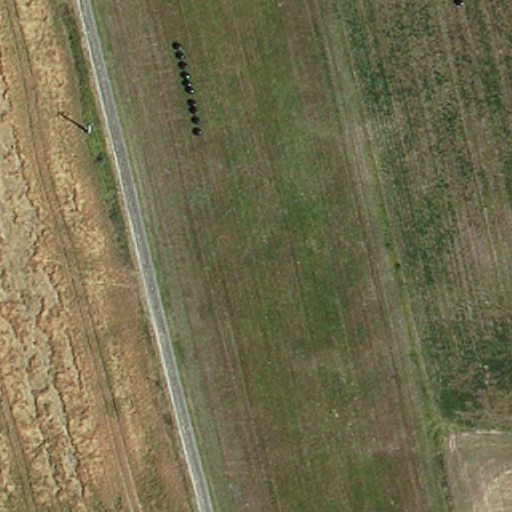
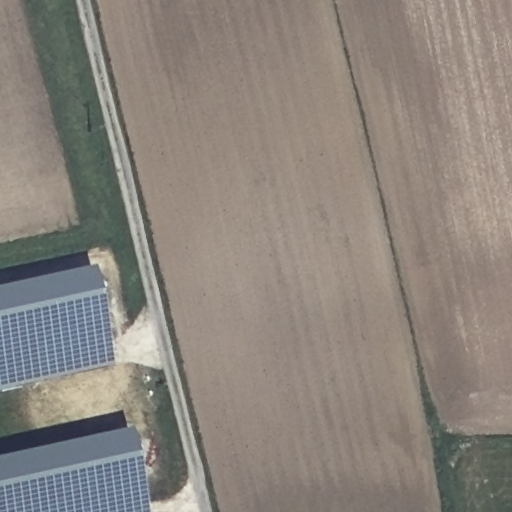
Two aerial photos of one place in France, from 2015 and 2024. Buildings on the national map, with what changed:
new [(0,288),(89,268),(110,370),(0,393),(0,288)]
new [(134,512),(0,512),(0,459),(118,433),(134,512)]

